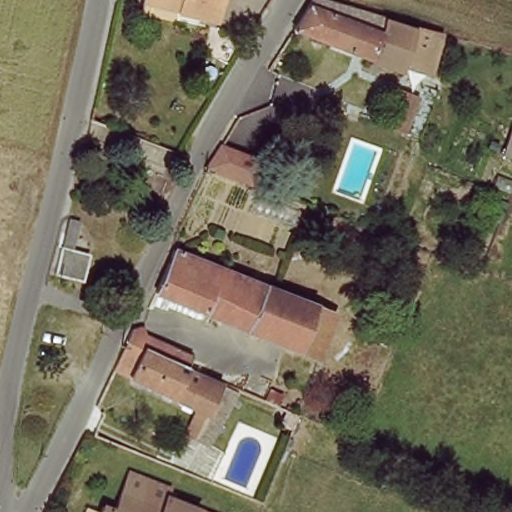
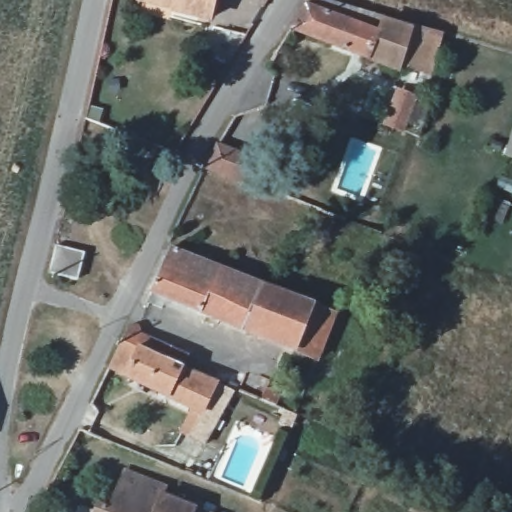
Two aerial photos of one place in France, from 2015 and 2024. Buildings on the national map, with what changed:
unchanged [(140,0),(215,0),(210,20),(174,12),(139,3),(140,0)]
unchanged [(390,21),(417,27),(406,67),(405,69),(298,29),(311,6),(315,0),(328,0),(391,19),(390,21)]
unchanged [(418,27),(443,33),(431,74),(406,67),(417,27),(418,27)]
unchanged [(393,125),(377,119),(391,86),(407,92),(393,125)]
unchanged [(250,182),(204,166),(218,144),(259,161),(250,182)]
unchanged [(53,272),(60,245),(67,216),(79,219),(71,247),(88,252),(81,278),(53,272)]
unchanged [(308,322),(298,347),(203,311),(153,291),(171,248),(315,304),(308,322)]
unchanged [(338,313),(321,357),(298,347),(308,322),(315,304),(338,313)]
unchanged [(183,432),(195,407),(126,376),(126,375),(110,367),(120,347),(123,340),(128,327),(139,325),(141,326),(143,333),(190,355),(184,366),(236,389),(206,444),(183,432)]
unchanged [(300,414),(294,428),(281,423),(288,410),(299,414),(300,414)]
unchanged [(165,500),(160,512),(155,512),(118,497),(126,476),(168,493),(165,500)]
unchanged [(155,512),(111,512),(118,497),(155,512)]
unchanged [(193,512),(160,512),(165,500),(193,512)]
unchanged [(109,512),(99,512),(100,508),(109,512)]

